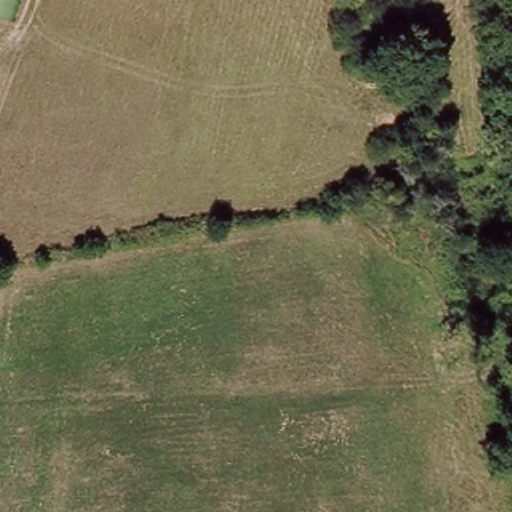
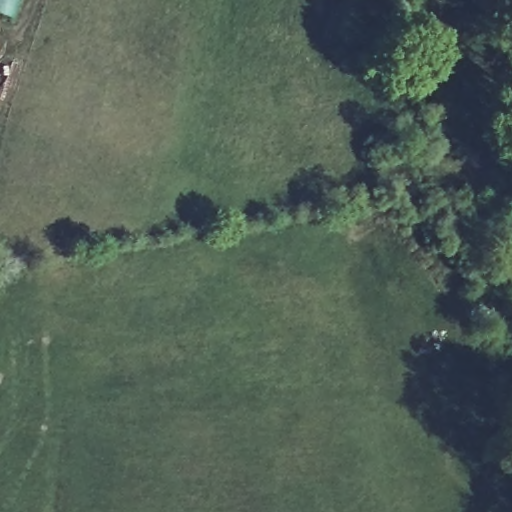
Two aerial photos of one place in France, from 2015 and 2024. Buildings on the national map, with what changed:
unchanged [(0,15),(0,0),(19,0),(13,19),(0,15)]

